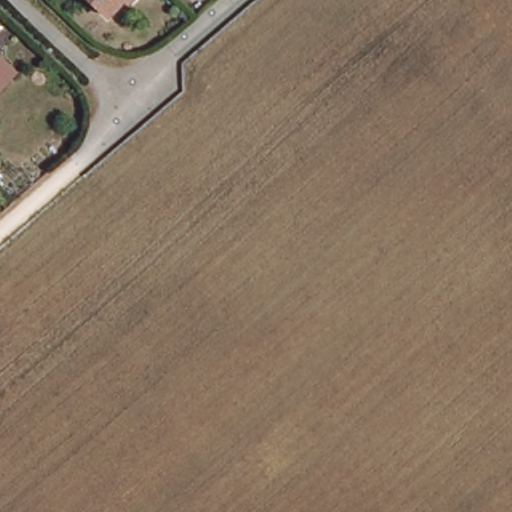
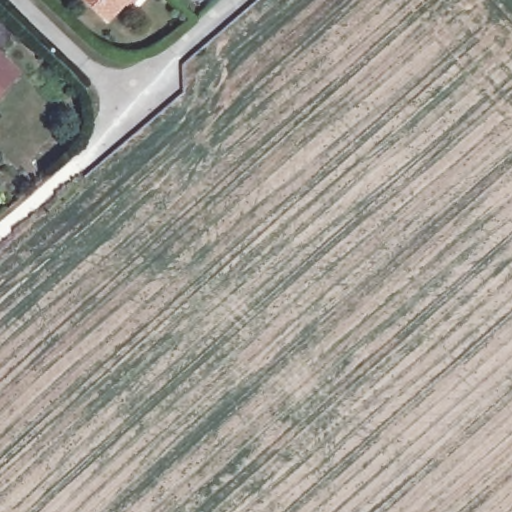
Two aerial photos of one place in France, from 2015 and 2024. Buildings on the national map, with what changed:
unchanged [(102,11),(90,0),(111,0),(102,11)]
unchanged [(0,66),(7,72),(0,80),(0,66)]

